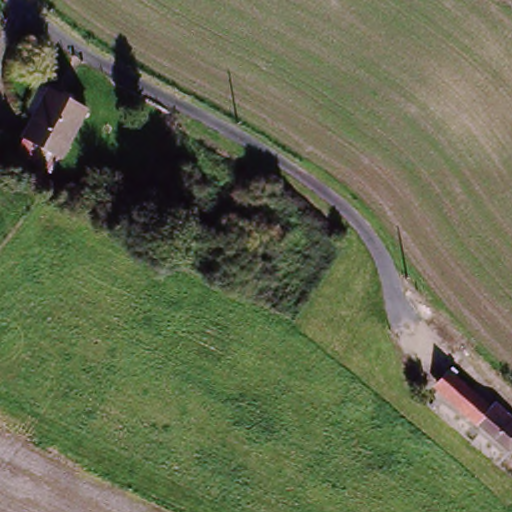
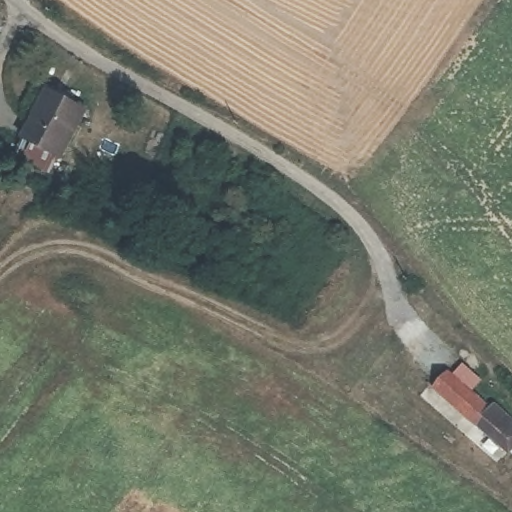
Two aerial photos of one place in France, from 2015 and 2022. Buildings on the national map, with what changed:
unchanged [(48,176),(11,154),(37,110),(75,132),(48,176)]
unchanged [(490,401),(512,420),(512,443),(506,450),(435,391),(444,380),(485,406),(490,401)]

